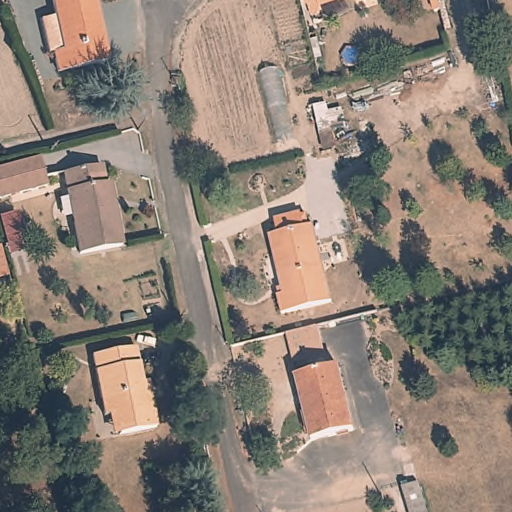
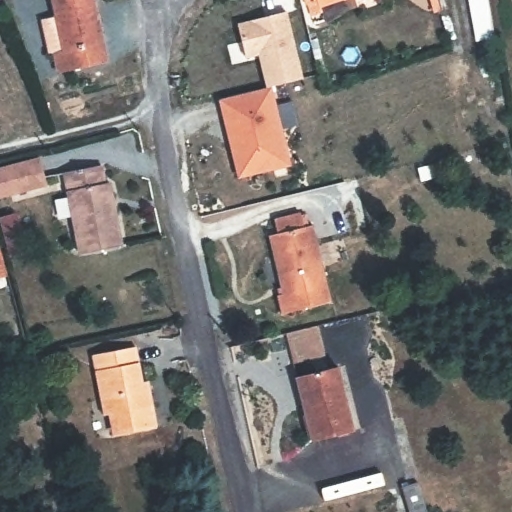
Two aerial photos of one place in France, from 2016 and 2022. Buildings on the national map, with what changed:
unchanged [(64,71),(61,55),(56,55),(46,20),(62,15),(58,0),(101,0),(114,58),(64,71)]
unchanged [(317,0),(336,0),(318,5),(317,0)]
new [(218,100),(265,89),(258,56),(245,60),(237,24),(286,11),(303,80),(272,88),(291,166),(238,179),(218,100)]
unchanged [(0,197),(0,165),(39,153),(47,184),(0,197)]
unchanged [(102,174),(109,172),(124,239),(80,250),(62,162),(97,155),(102,174)]
unchanged [(298,206),(304,225),(315,221),(335,303),(284,316),(280,300),(290,298),(274,234),(282,231),(277,212),(298,206)]
unchanged [(12,273),(0,278),(0,238),(2,237),(12,273)]
unchanged [(282,328),(317,320),(326,361),(340,358),(357,426),(303,440),(282,328)]
unchanged [(120,430),(115,410),(104,413),(89,350),(130,341),(137,373),(142,371),(154,421),(120,430)]
unchanged [(399,488),(415,485),(423,512),(406,512),(399,488)]

